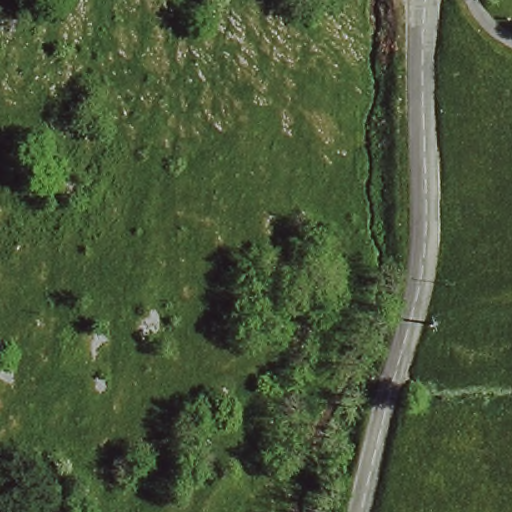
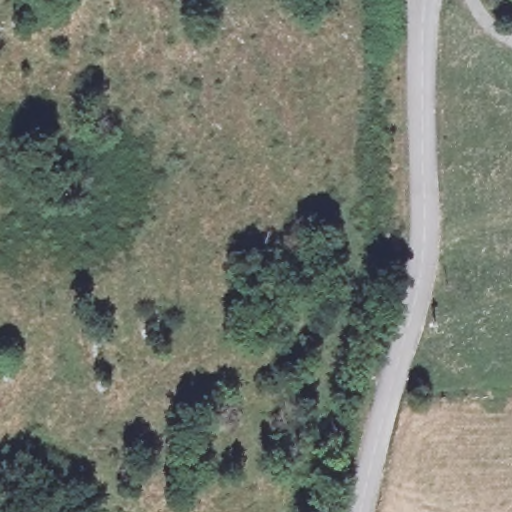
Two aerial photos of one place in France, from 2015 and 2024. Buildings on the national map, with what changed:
[]

